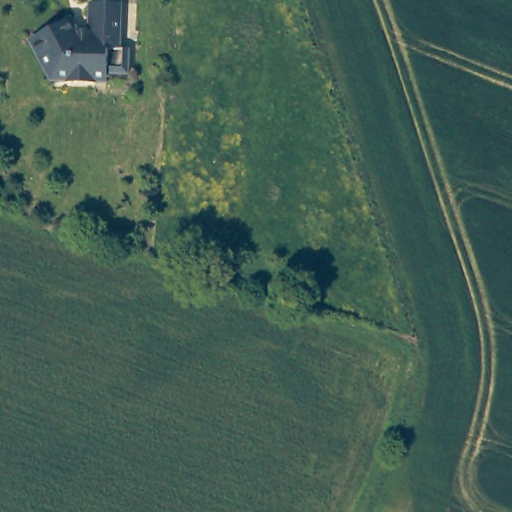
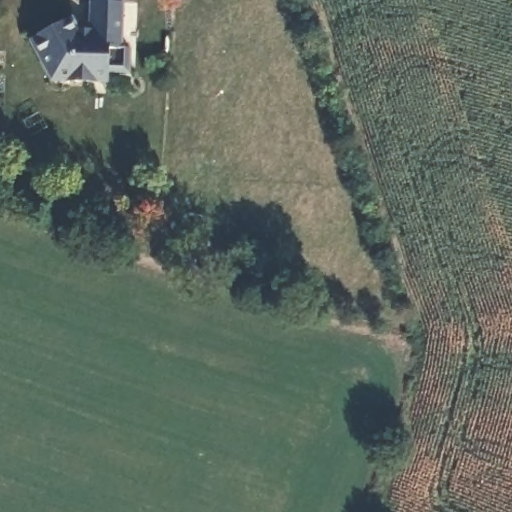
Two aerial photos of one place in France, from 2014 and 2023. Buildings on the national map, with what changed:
unchanged [(123,6),(123,46),(134,47),(133,72),(103,72),(86,82),(61,80),(51,62),(45,64),(35,44),(71,24),(79,35),(92,34),(94,5),(123,6)]

